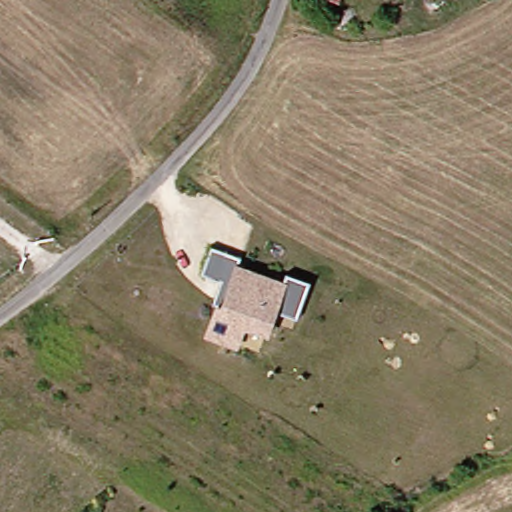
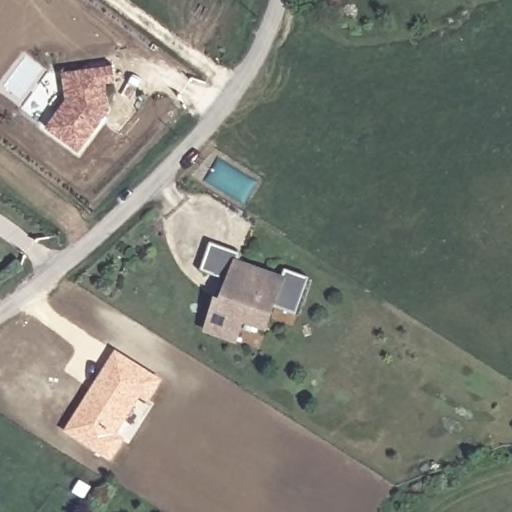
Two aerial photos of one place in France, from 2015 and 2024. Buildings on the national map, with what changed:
new [(114,81),(104,82),(108,110),(77,151),(44,126),(65,99),(61,71),(111,64),(114,81)]
unchanged [(212,242),(242,252),(239,262),(284,277),(287,268),(311,277),(298,313),(275,306),(268,327),(245,319),(238,339),(209,328),(219,300),(215,298),(222,276),(202,269),(212,242)]
new [(149,403),(142,400),(120,433),(127,438),(112,462),(66,432),(116,350),(164,380),(149,403)]

